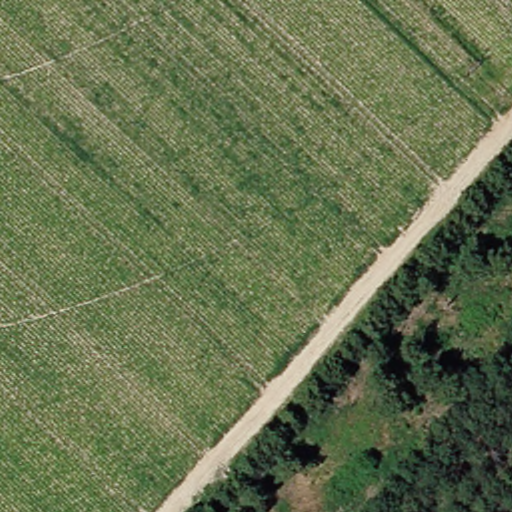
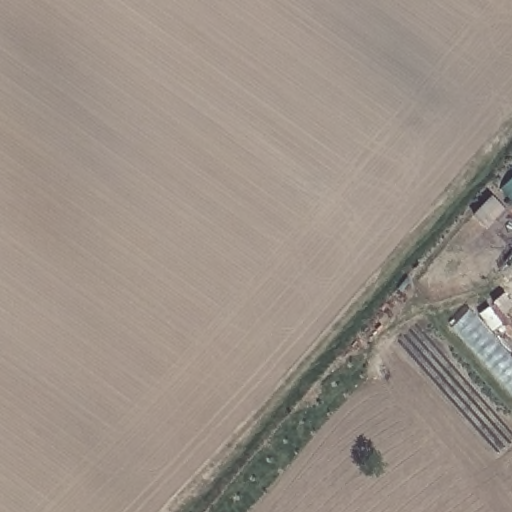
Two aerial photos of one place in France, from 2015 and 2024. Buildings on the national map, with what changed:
new [(468,310),(512,361),(512,402),(449,328),(468,310)]

